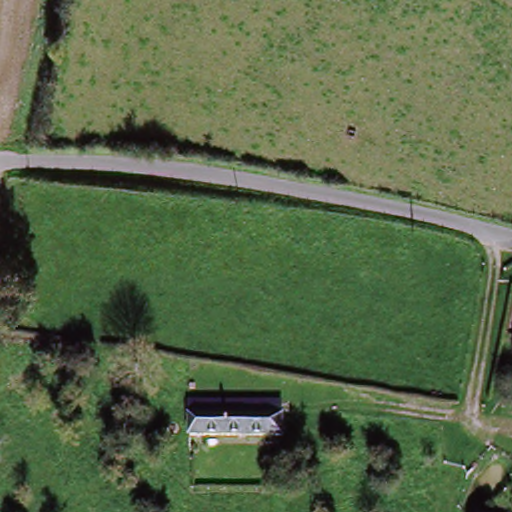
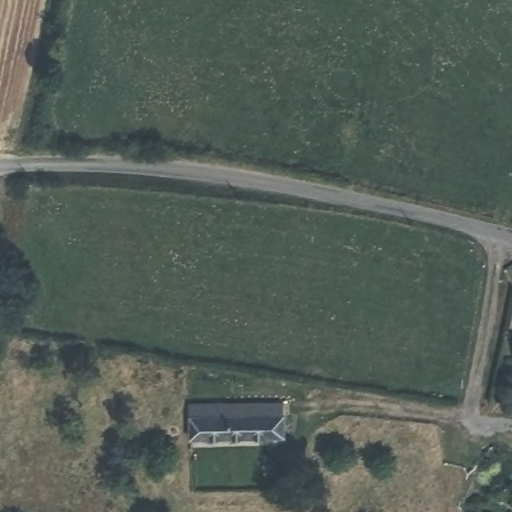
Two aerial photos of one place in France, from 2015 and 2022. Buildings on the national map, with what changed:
unchanged [(285,419),(286,442),(190,439),(191,416),(285,419)]

